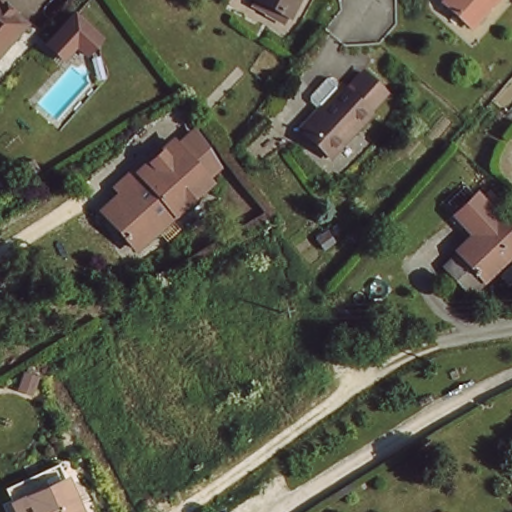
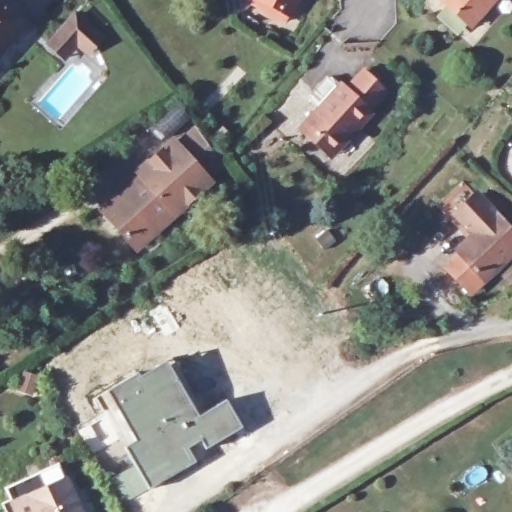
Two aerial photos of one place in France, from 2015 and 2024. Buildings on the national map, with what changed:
unchanged [(295,17),(263,0),(303,0),(295,17)]
unchanged [(468,26),(440,2),(442,0),(491,0),(468,26)]
unchanged [(97,31),(85,45),(74,38),(61,51),(47,39),(66,15),(73,9),(97,31)]
unchanged [(0,55),(0,10),(23,27),(0,55)]
unchanged [(304,127),(309,121),(344,84),(349,88),(365,71),(386,91),(370,109),(374,113),(339,151),(333,157),(304,127)]
unchanged [(122,192),(116,181),(136,166),(139,170),(176,144),(180,149),(198,136),(218,178),(205,187),(208,192),(176,216),(128,249),(104,218),(98,209),(122,192)]
unchanged [(512,244),(512,251),(462,292),(444,267),(475,241),(471,235),(491,219),(512,244)]
new [(96,397),(136,372),(141,377),(172,358),(205,413),(226,401),(243,431),(143,484),(96,397)]
unchanged [(11,494),(63,468),(70,484),(75,494),(83,512),(20,512),(16,504),(11,494)]

